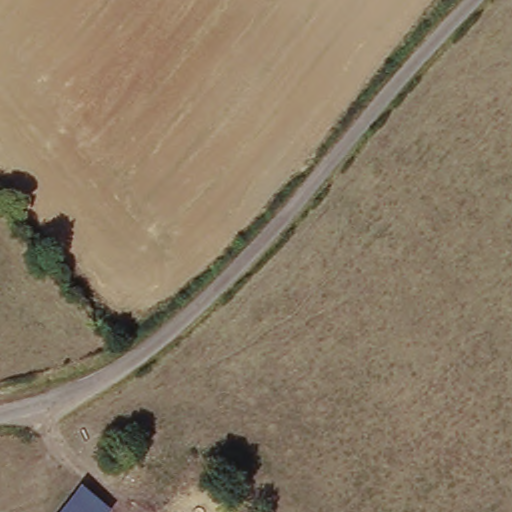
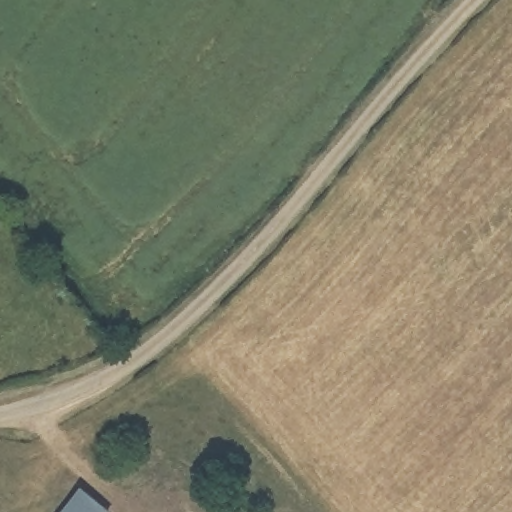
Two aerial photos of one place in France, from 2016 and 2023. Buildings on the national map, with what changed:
unchanged [(84,488),(112,512),(65,512),(84,488)]

